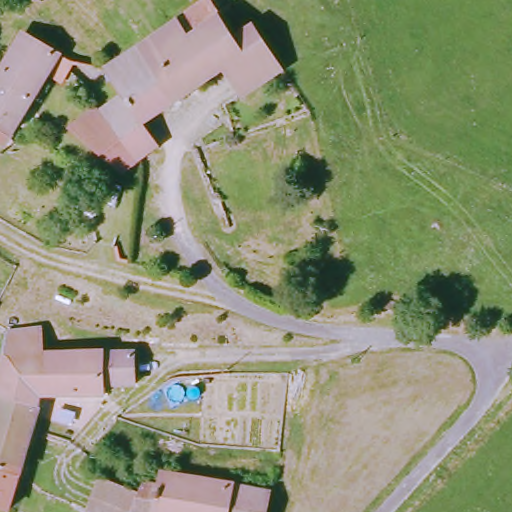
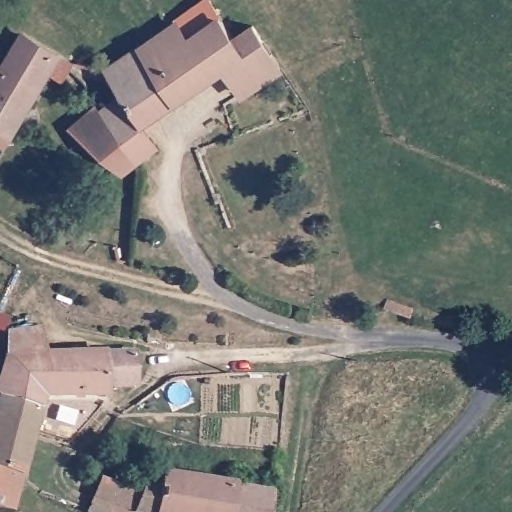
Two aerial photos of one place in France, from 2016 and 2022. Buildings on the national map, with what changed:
unchanged [(134,152),(107,117),(100,107),(125,86),(110,65),(195,7),(203,20),(213,15),(230,35),(250,21),(263,42),(223,68),(163,108),(146,118),(161,140),(141,157),(134,152)]
unchanged [(63,74),(63,79),(50,71),(3,144),(0,142),(0,60),(15,36),(68,63),(63,74)]
unchanged [(241,92),(223,68),(263,42),(280,68),(241,92)]
unchanged [(102,192),(83,174),(68,160),(107,117),(134,152),(102,192)]
unchanged [(40,359),(0,361),(0,346),(3,331),(39,332),(40,359)]
unchanged [(100,385),(99,400),(35,401),(31,412),(0,405),(0,361),(40,359),(132,352),(129,385),(100,385)]
unchanged [(0,510),(0,405),(31,412),(24,438),(2,511),(0,510)]
unchanged [(142,477),(160,480),(161,473),(201,481),(233,486),(228,512),(129,512),(138,490),(142,477)]
unchanged [(98,475),(138,490),(129,512),(94,512),(83,508),(98,475)]
unchanged [(268,491),(263,512),(228,512),(233,486),(268,491)]

